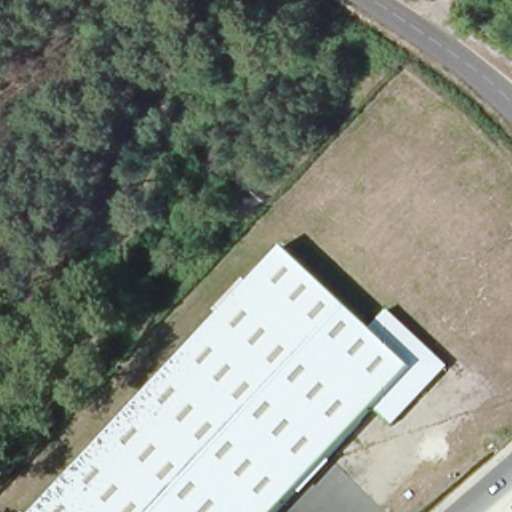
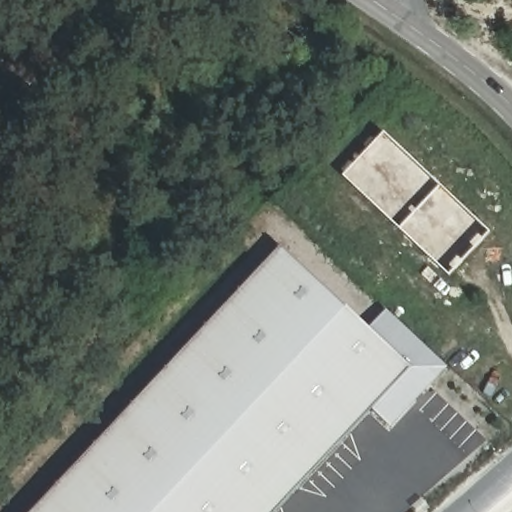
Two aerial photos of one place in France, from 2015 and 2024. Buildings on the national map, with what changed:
new [(449,274),(343,175),(384,131),(489,232),(449,274)]
unchanged [(370,331),(389,312),(448,366),(394,425),(372,405),(272,512),(33,512),(281,248),(370,331)]

